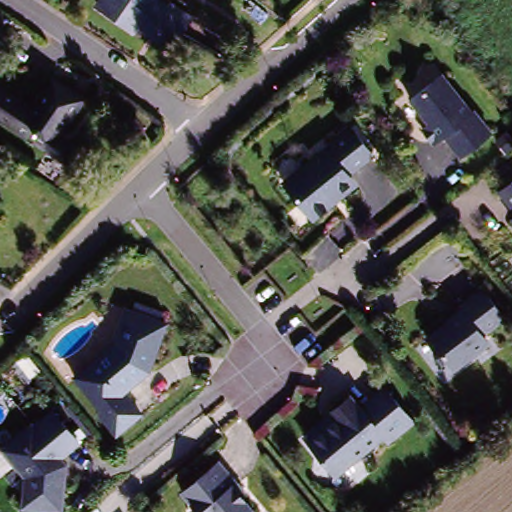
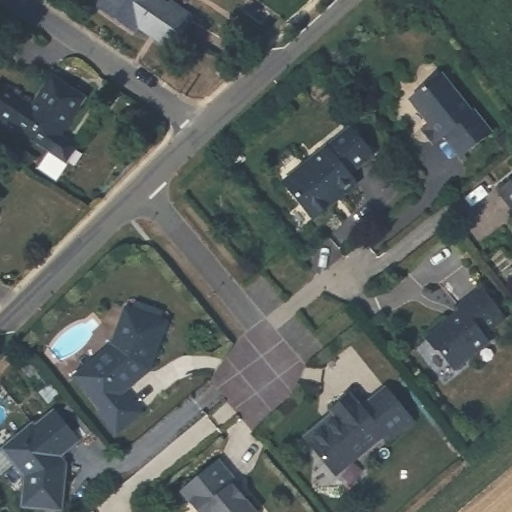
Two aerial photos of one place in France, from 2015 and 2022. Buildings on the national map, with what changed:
unchanged [(191,13),(187,18),(171,43),(137,21),(134,26),(100,3),(102,0),(160,0),(166,4),(168,0),(171,0),(191,13)]
unchanged [(467,156),(450,135),(440,142),(429,128),(435,122),(416,98),(448,73),(478,111),(480,110),(498,132),(467,156)]
unchanged [(27,113),(46,83),(80,105),(46,156),(0,126),(0,95),(27,113)]
unchanged [(365,155),(340,174),(345,180),(322,198),(325,202),(305,218),(275,181),(342,127),(365,155)]
unchanged [(512,230),(503,219),(510,213),(492,190),(512,174),(512,230)]
unchanged [(495,317),(474,335),(480,342),(445,370),(431,352),(427,352),(419,342),(420,338),(453,311),(449,307),(472,288),(495,317)]
unchanged [(90,410),(94,408),(70,373),(110,345),(127,310),(165,328),(143,374),(117,393),(133,415),(107,434),(90,410)]
unchanged [(417,420),(394,441),(388,434),(347,470),(336,469),(314,443),(342,420),(335,413),(355,396),(365,407),(388,387),(417,420)]
unchanged [(54,460),(62,477),(53,512),(43,512),(14,503),(22,474),(2,444),(35,421),(37,424),(56,410),(79,443),(54,460)]
unchanged [(216,466),(234,488),(230,491),(247,512),(193,512),(180,495),(216,466)]

